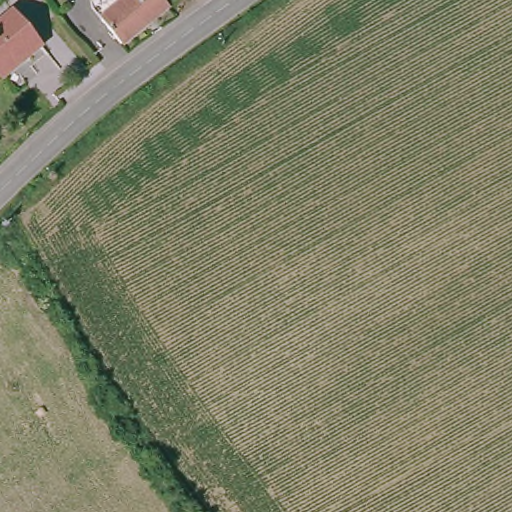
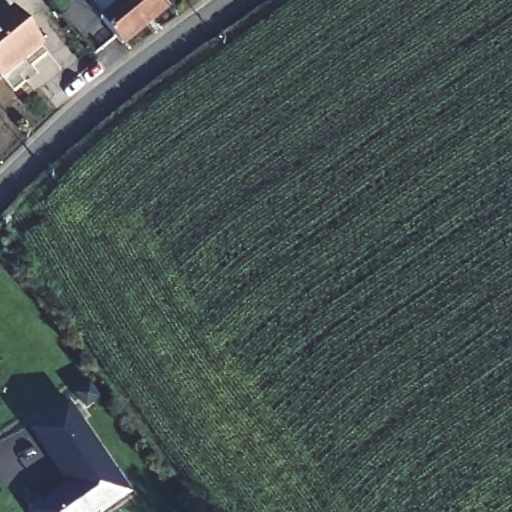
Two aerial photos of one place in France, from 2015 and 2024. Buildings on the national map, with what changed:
unchanged [(120,38),(97,11),(111,0),(164,0),(120,38)]
unchanged [(70,4),(87,24),(75,34),(59,14),(70,4)]
unchanged [(4,76),(0,71),(0,17),(8,11),(38,47),(4,76)]
new [(105,512),(40,512),(40,511),(79,484),(41,429),(76,405),(135,492),(105,512)]

